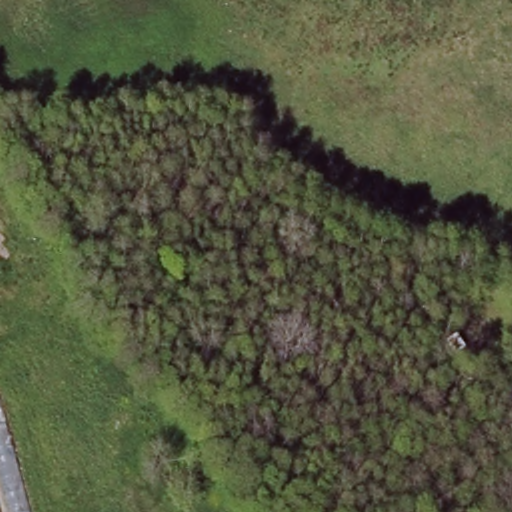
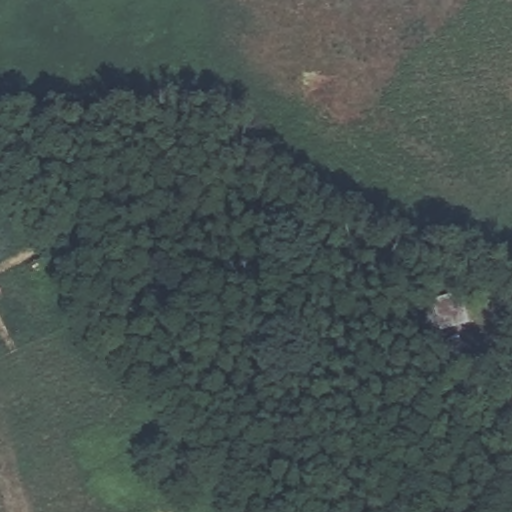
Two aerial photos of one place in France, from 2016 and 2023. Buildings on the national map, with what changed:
demolished [(1,398),(30,512),(0,512),(0,398),(1,398)]

